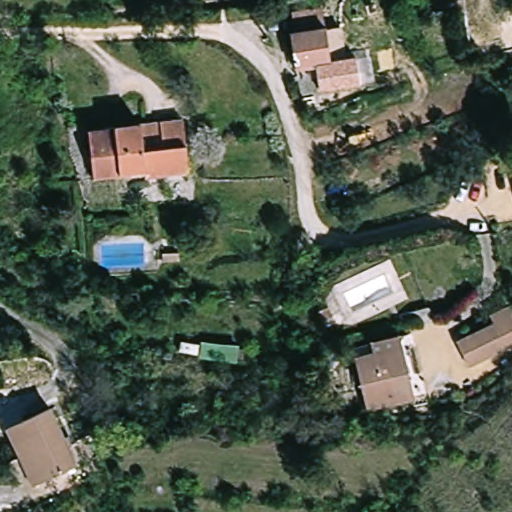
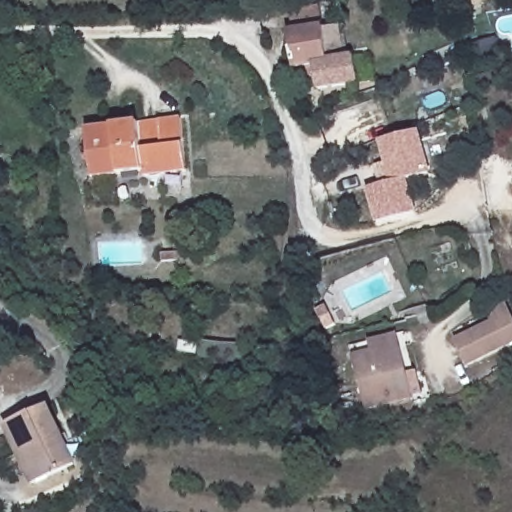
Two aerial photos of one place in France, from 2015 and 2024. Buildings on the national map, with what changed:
unchanged [(438,14),(436,3),(448,0),(462,0),(463,9),(438,14)]
unchanged [(290,31),(295,31),(292,9),(322,4),(331,60),(340,58),(356,56),(360,80),(345,83),(320,86),(316,63),(296,66),(290,31)]
unchanged [(182,115),(187,169),(145,173),(144,168),(93,173),(88,124),(182,115)]
new [(380,185),(374,168),(386,166),(378,143),(421,131),(432,171),(406,179),(416,210),(375,222),(365,188),(380,185)]
unchanged [(468,364),(456,340),(492,322),(488,313),(505,304),(512,318),(512,341),(468,364)]
unchanged [(331,314),(319,320),(315,310),(327,305),(331,314)]
unchanged [(368,408),(355,361),(374,356),(371,343),(398,336),(401,349),(413,397),(368,408)]
unchanged [(53,405),(77,460),(35,478),(11,423),(53,405)]

